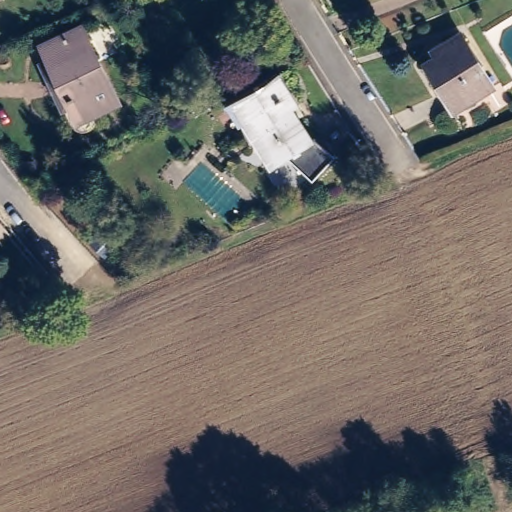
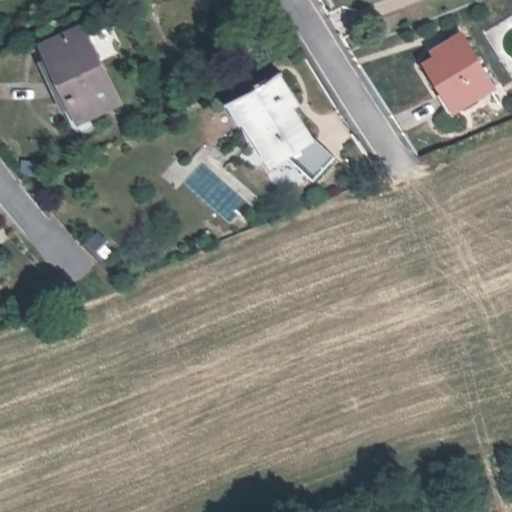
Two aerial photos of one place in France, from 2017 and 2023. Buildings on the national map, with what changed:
unchanged [(432,0),(436,0),(433,1),(432,0)]
unchanged [(0,6),(0,1),(2,6),(0,6)]
unchanged [(118,107),(78,126),(68,105),(60,109),(45,76),(53,73),(42,51),(83,33),(118,107)]
unchanged [(465,105),(459,109),(449,94),(432,65),(443,58),(440,51),(447,48),(467,36),(497,86),(465,105)]
unchanged [(285,115),(304,145),(307,141),(329,161),(309,183),(284,161),(268,170),(243,128),(234,131),(221,109),(253,94),(263,87),(274,78),(293,108),(285,115)]
unchanged [(26,164),(36,166),(35,176),(24,175),(26,164)]

